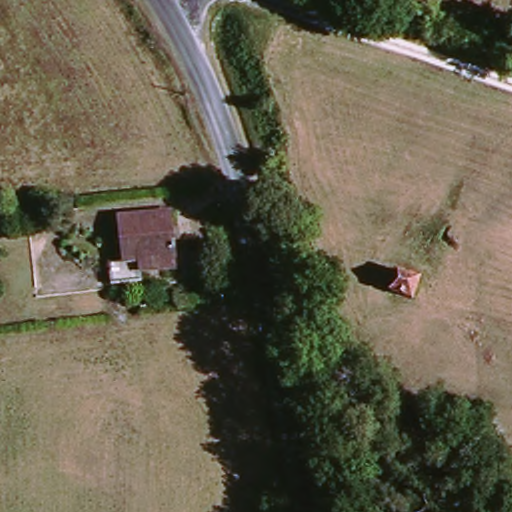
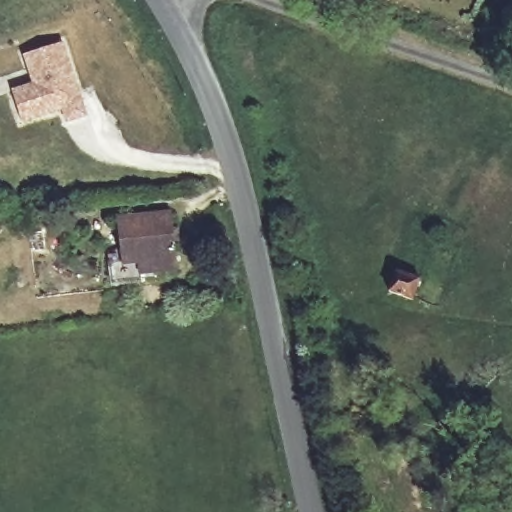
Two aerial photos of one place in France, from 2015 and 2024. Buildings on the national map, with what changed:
new [(23,122),(15,92),(36,85),(27,55),(63,44),(87,116),(69,122),(65,110),(51,114),(23,122)]
unchanged [(160,271),(141,273),(142,283),(115,287),(111,262),(123,260),(117,216),(155,211),(172,209),(178,255),(180,269),(160,271)]
unchanged [(422,281),(411,301),(386,287),(398,266),(422,281)]

